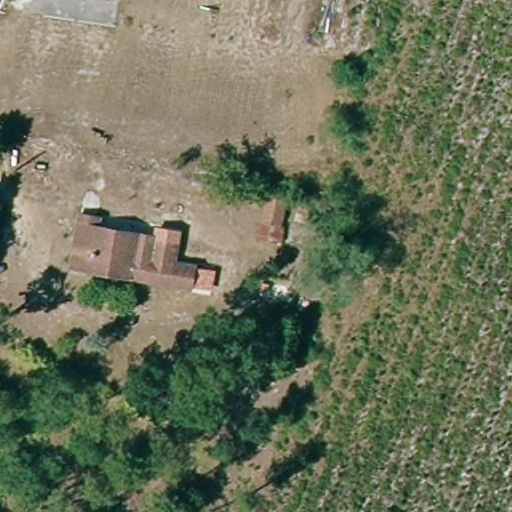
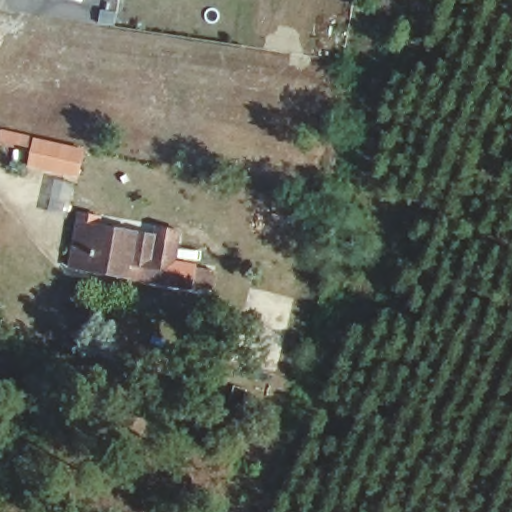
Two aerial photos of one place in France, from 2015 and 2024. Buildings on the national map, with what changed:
new [(31,149),(4,140),(6,129),(35,137),(86,150),(80,177),(28,164),(31,149)]
unchanged [(171,259),(192,263),(189,285),(67,264),(76,210),(97,213),(96,222),(155,232),(154,237),(175,240),(171,259)]

